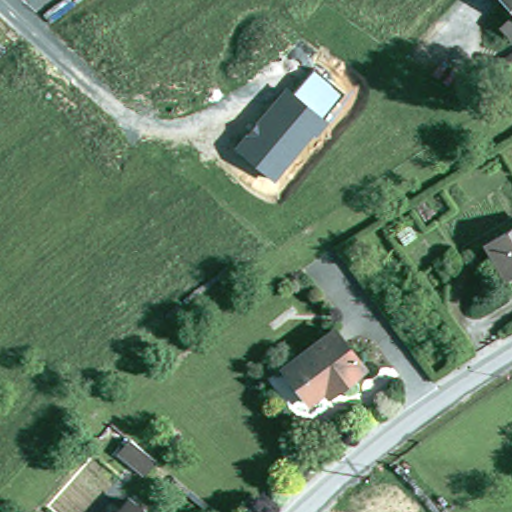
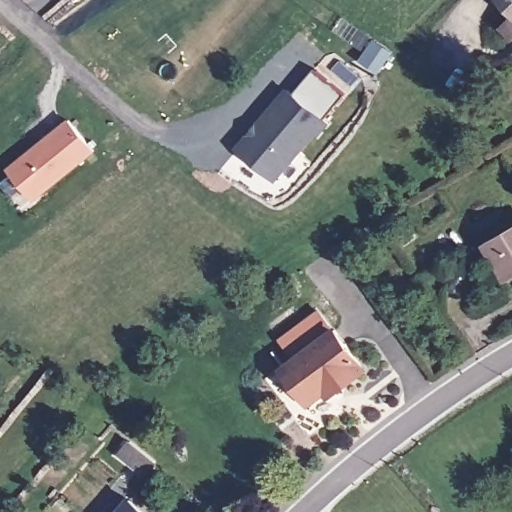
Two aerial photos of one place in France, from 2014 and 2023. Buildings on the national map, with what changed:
unchanged [(512,0),(512,13),(500,0),(512,0)]
unchanged [(284,88),(290,94),(313,67),(343,93),(323,117),(327,120),(275,183),(233,149),(284,88)]
new [(95,150),(32,200),(5,169),(68,117),(95,150)]
unchanged [(483,244),(512,227),(512,274),(503,279),(499,271),(483,244)]
unchanged [(325,390),(310,402),(282,367),(333,327),(365,367),(340,387),(330,395),(325,390)]
unchanged [(127,501),(141,512),(118,512),(127,501)]

